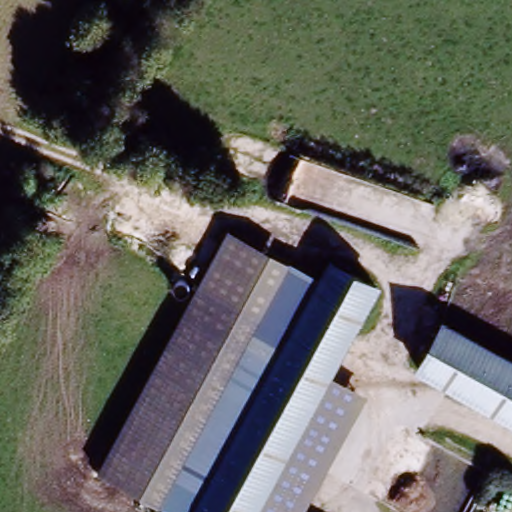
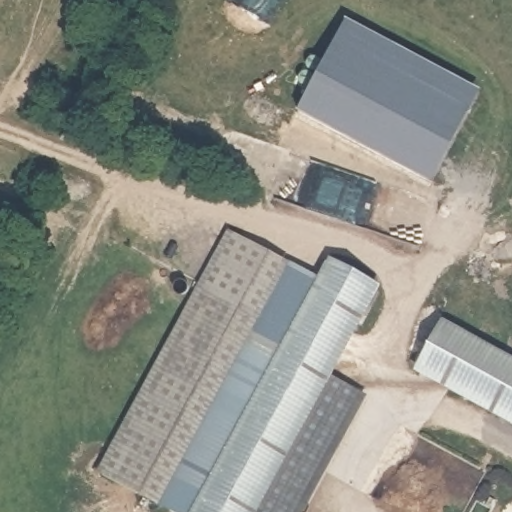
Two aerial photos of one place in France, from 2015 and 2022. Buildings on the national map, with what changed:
new [(432,180),(298,110),(346,16),(479,91),(432,180)]
unchanged [(225,229),(331,283),(212,512),(178,512),(97,468),(225,229)]
unchanged [(387,285),(342,373),(270,512),(212,512),(331,283),(344,262),(387,285)]
unchanged [(413,373),(439,329),(512,368),(512,425),(413,373)]
unchanged [(310,512),(270,512),(342,373),(373,392),(310,512)]

